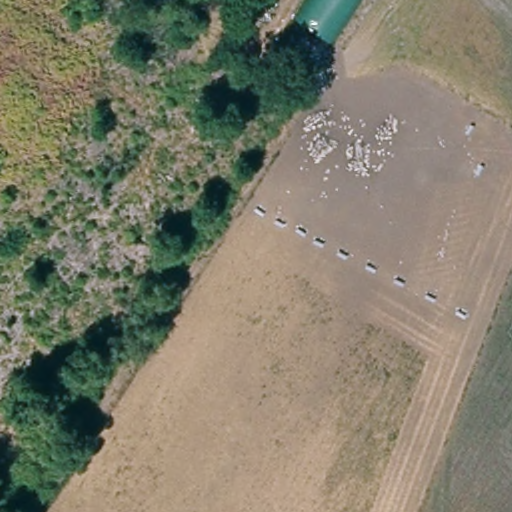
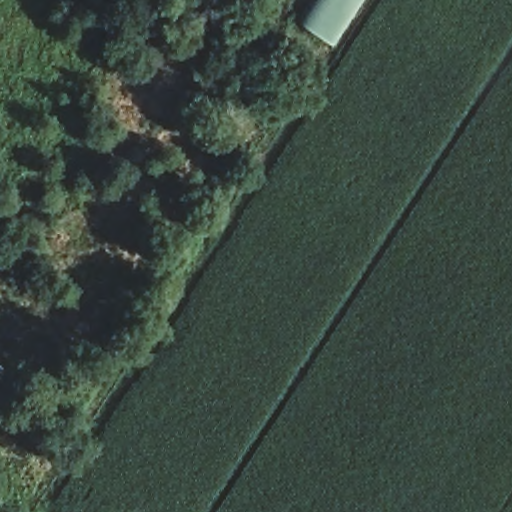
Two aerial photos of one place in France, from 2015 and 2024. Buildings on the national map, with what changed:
unchanged [(330,47),(294,22),(308,0),(361,0),(330,47)]

